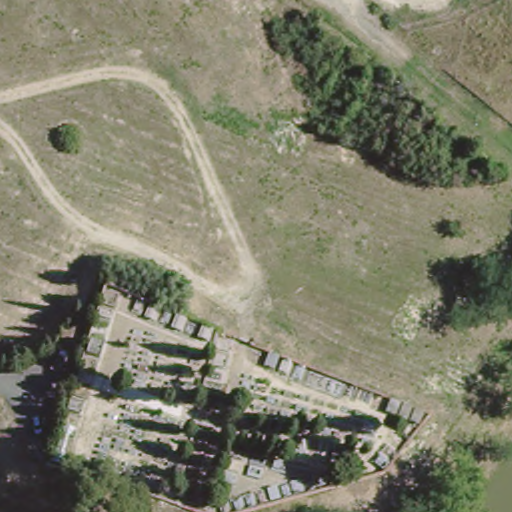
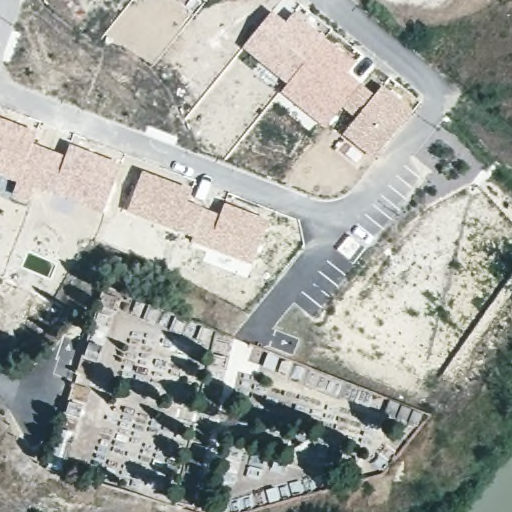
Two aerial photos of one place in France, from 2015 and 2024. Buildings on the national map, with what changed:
new [(205,1),(204,0),(206,0),(205,1)]
new [(272,9),(285,20),(295,9),(327,38),(356,61),(348,71),(374,93),(353,118),(342,108),(325,128),(317,122),(304,113),(280,92),(286,84),(242,46),(272,9)]
new [(382,85),(413,110),(374,158),(342,132),(353,118),(374,93),(382,85)]
new [(37,131),(33,142),(64,154),(69,142),(120,163),(102,213),(35,187),(28,202),(10,195),(15,182),(0,177),(0,117),(37,131)]
new [(142,169),(192,188),(189,198),(218,212),(223,201),(268,220),(252,265),(190,241),(192,237),(125,210),(142,169)]

